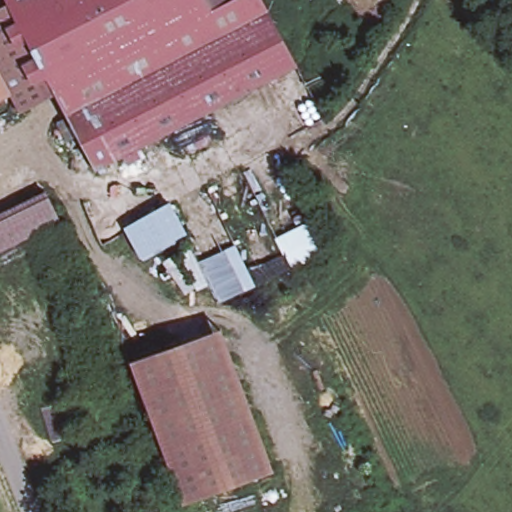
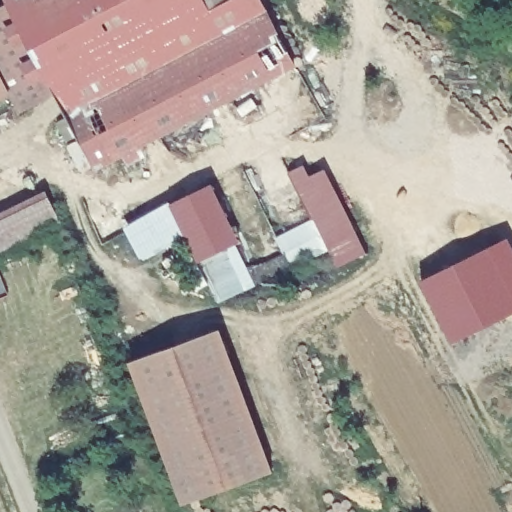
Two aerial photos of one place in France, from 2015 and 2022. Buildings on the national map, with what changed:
unchanged [(205,0),(211,12),(233,0),(260,0),(277,32),(207,77),(225,105),(94,173),(54,97),(8,7),(22,0),(205,0)]
unchanged [(205,0),(233,0),(211,12),(205,0)]
unchanged [(8,7),(54,97),(18,115),(9,99),(0,81),(0,11),(8,7)]
unchanged [(296,69),(225,105),(207,77),(277,32),(296,69)]
unchanged [(9,99),(0,103),(0,81),(9,99)]
new [(304,167),(308,177),(324,170),(365,255),(336,267),(330,252),(314,217),(288,172),(304,167)]
new [(241,240),(236,243),(256,285),(218,303),(199,262),(184,233),(141,257),(124,227),(170,201),(171,204),(213,184),(241,240)]
unchanged [(48,194),(63,223),(0,254),(0,217),(48,194)]
new [(314,217),(330,252),(292,271),(275,237),(314,217)]
new [(512,250),(512,313),(450,345),(421,284),(507,239),(512,250)]
unchanged [(218,330),(269,470),(181,502),(129,362),(218,330)]

